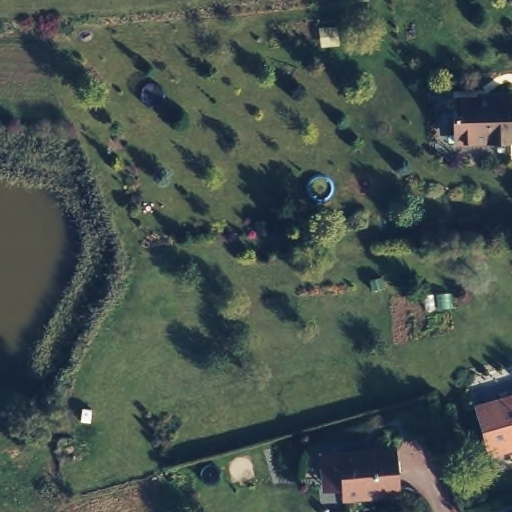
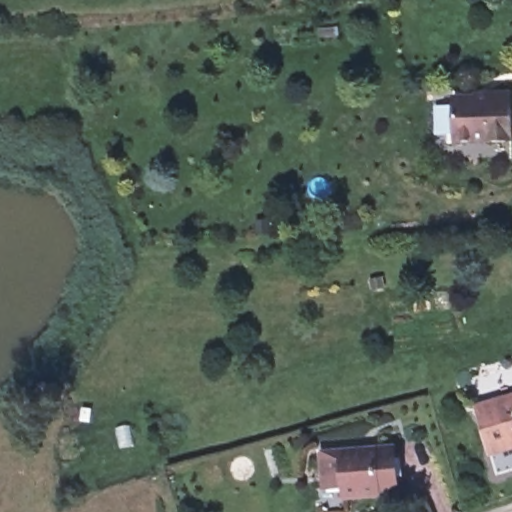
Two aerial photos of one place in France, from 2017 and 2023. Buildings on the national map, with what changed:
unchanged [(487,102),(512,102),(512,151),(457,150),(454,106),(487,106),(487,102)]
unchanged [(512,447),(492,453),(482,408),(512,399),(512,447)]
unchanged [(323,474),(323,449),(357,448),(357,451),(393,449),(394,485),(377,484),(375,492),(341,494),(340,487),(323,485),(323,474)]

